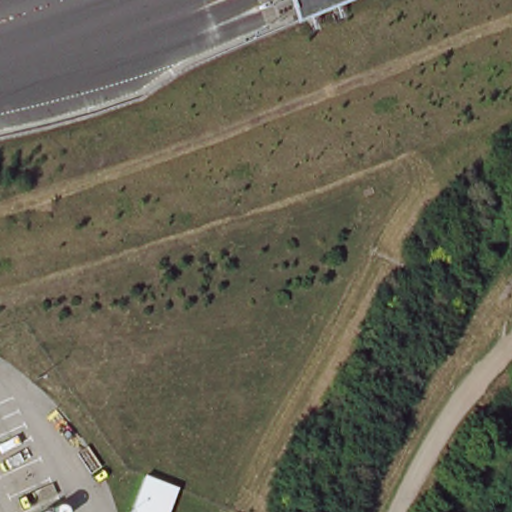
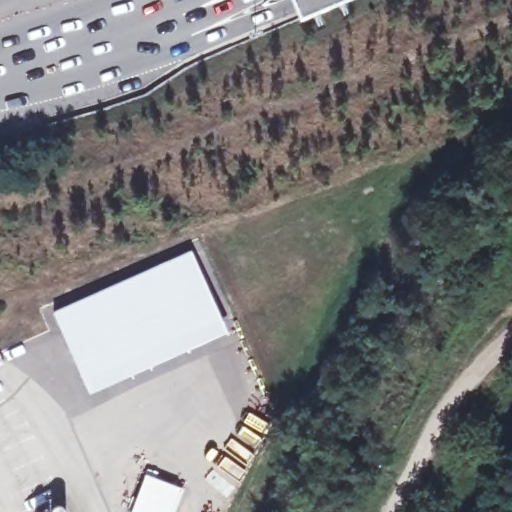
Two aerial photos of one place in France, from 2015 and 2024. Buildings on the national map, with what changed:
unchanged [(360,7),(302,32),(290,0),(356,0),(360,7)]
new [(191,248),(229,332),(89,394),(52,311),(191,248)]
new [(180,488),(171,512),(133,512),(147,475),(180,488)]

